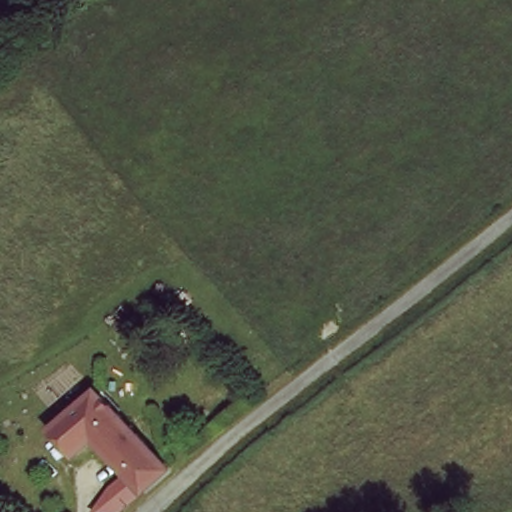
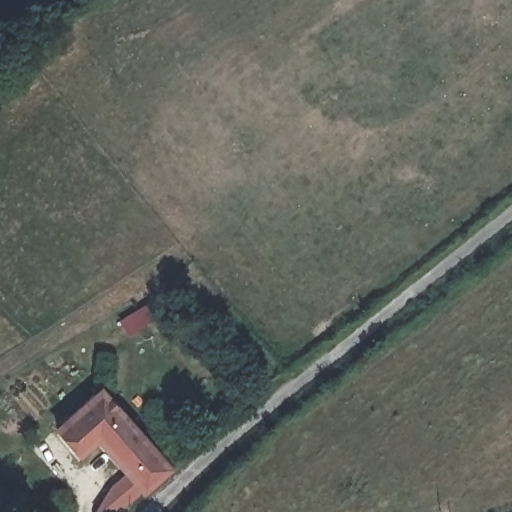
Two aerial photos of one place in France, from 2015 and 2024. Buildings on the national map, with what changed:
unchanged [(100,448),(82,464),(55,432),(97,387),(175,470),(144,499),(100,448)]
unchanged [(121,488),(134,501),(122,512),(108,512),(102,506),(121,488)]

